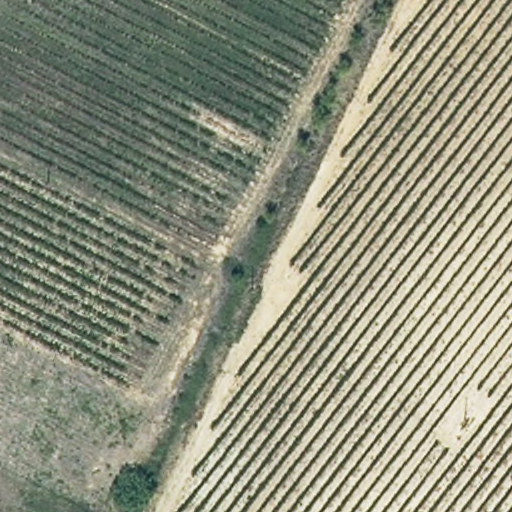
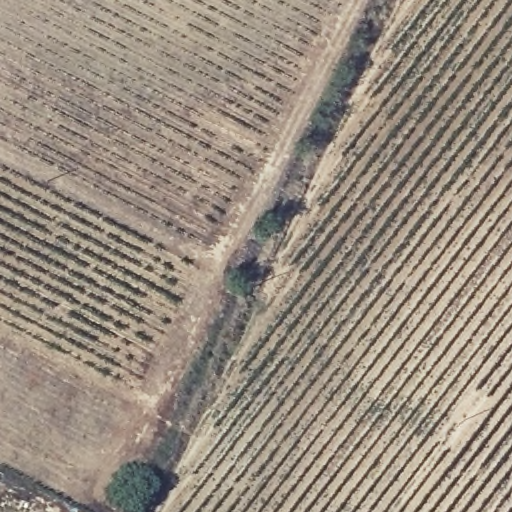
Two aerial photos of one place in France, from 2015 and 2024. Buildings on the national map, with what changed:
[]

